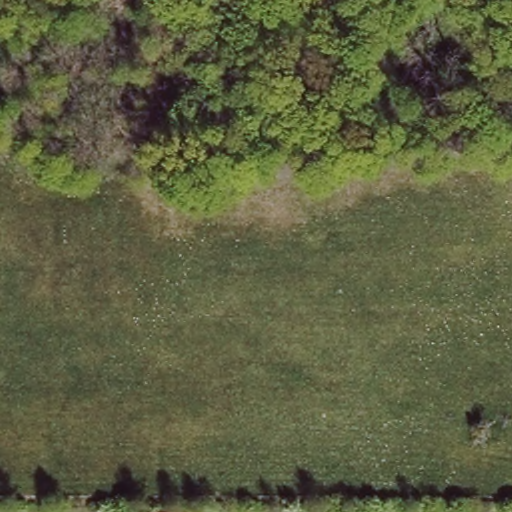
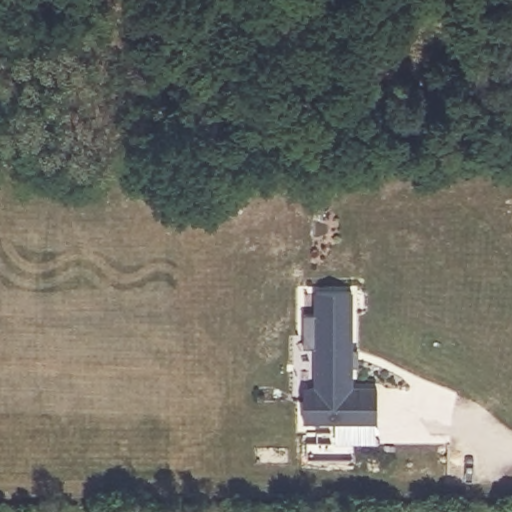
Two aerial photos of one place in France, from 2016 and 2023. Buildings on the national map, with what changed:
new [(303,386),(315,386),(314,348),(305,348),(303,315),(315,315),(314,292),(352,292),(353,350),(358,350),(359,367),(353,367),(353,387),(375,387),(376,423),(305,423),(303,386)]

